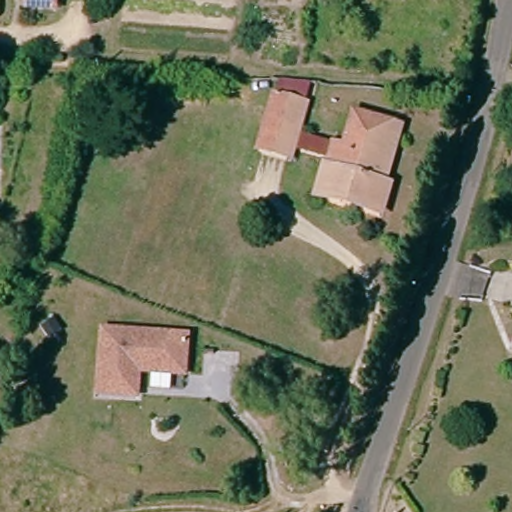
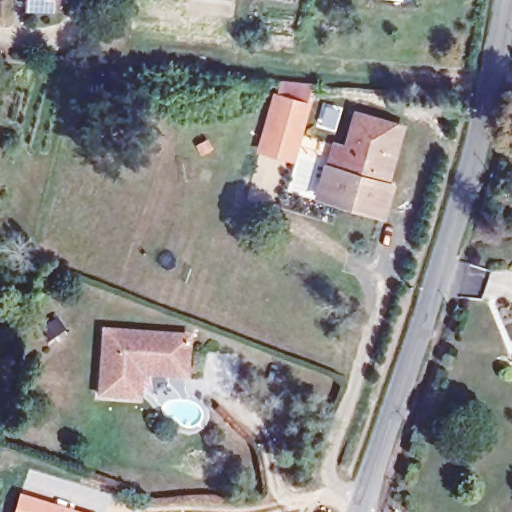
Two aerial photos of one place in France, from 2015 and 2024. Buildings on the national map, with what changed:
unchanged [(26,0),(55,0),(54,11),(26,10),(26,0)]
unchanged [(293,137),(263,130),(273,94),(302,102),(295,131),(293,137)]
unchanged [(338,168),(343,144),(352,106),(390,116),(376,177),(387,179),(379,210),(312,193),(320,165),(338,168)]
unchanged [(293,137),(295,131),(343,144),(338,168),(320,165),(321,159),(289,152),(286,163),(256,157),(263,130),(293,137)]
unchanged [(104,391),(94,389),(109,325),(126,329),(191,344),(182,383),(138,373),(133,397),(104,391)]
new [(78,512),(14,512),(19,495),(78,512)]

